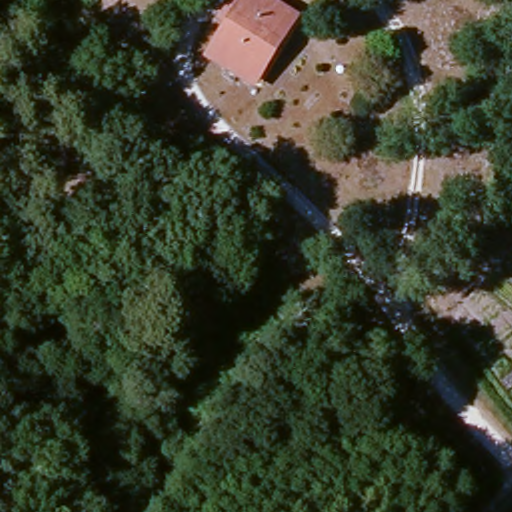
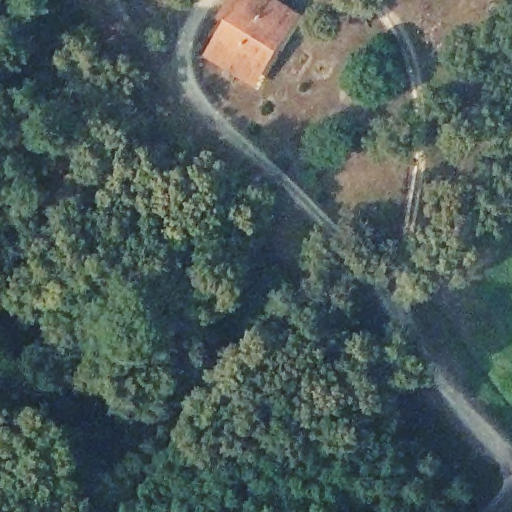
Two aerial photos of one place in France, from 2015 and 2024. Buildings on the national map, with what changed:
unchanged [(252,80),(211,58),(248,0),(286,0),(295,5),(252,80)]

